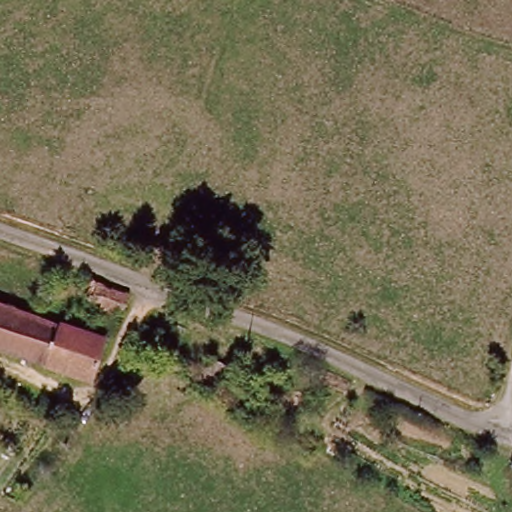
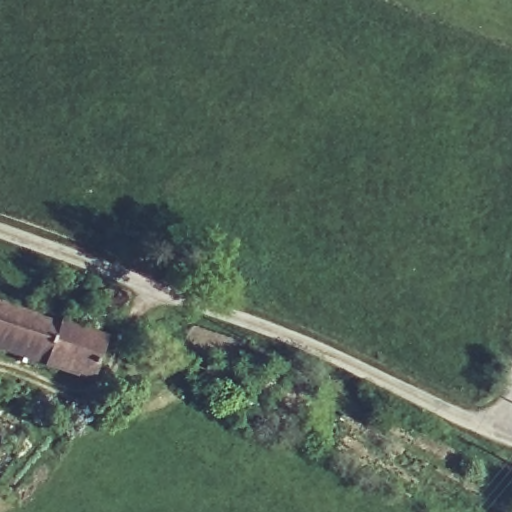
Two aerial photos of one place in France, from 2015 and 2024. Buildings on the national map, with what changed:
unchanged [(128,295),(117,324),(75,309),(85,279),(128,295)]
unchanged [(98,384),(0,350),(0,308),(110,346),(98,384)]

